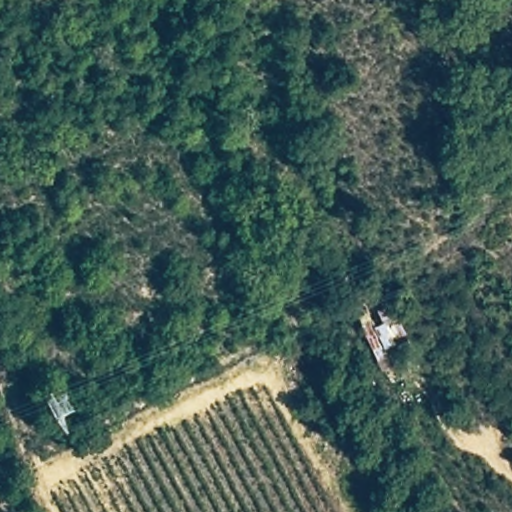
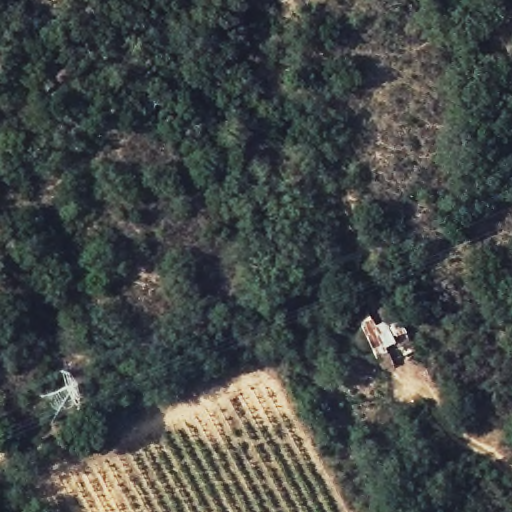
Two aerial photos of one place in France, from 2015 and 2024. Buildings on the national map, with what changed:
unchanged [(353,313),(387,295),(408,334),(388,344),(396,363),(379,370),(353,313)]

